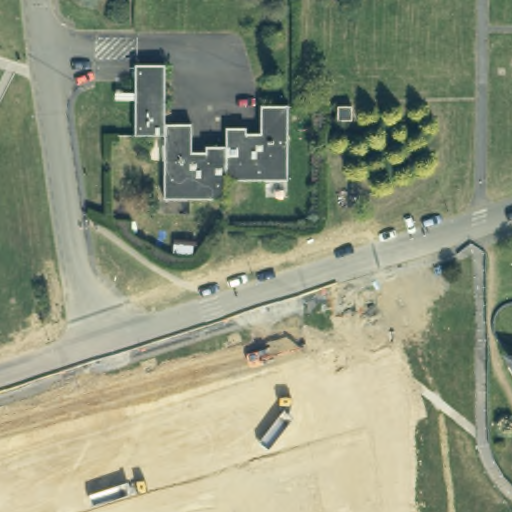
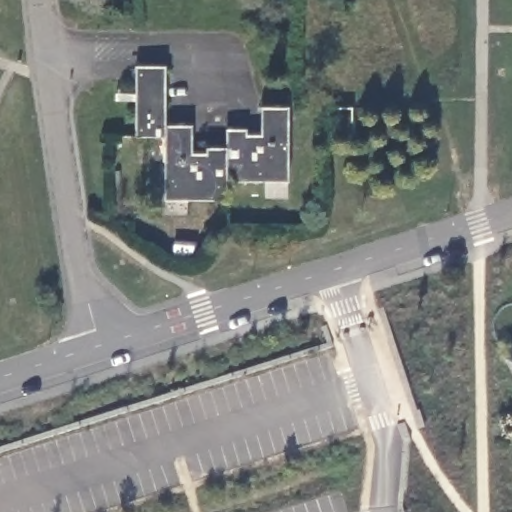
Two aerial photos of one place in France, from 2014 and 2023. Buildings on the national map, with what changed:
unchanged [(288,107),(288,181),(225,181),(225,200),(164,200),(165,137),(135,137),(135,66),(165,67),(165,125),(192,126),(191,154),(206,154),(206,148),(226,148),(226,129),(246,129),(246,134),(261,135),(260,107),(288,107)]
unchanged [(337,122),(337,109),(351,109),(351,122),(337,122)]
unchanged [(502,342),(498,339),(494,335),(492,331),(490,326),(490,321),(490,316),(492,311),(494,307),(498,303),(502,300),(507,298),(511,297),(512,297),(512,345),(511,345),(506,344),(502,342)]

